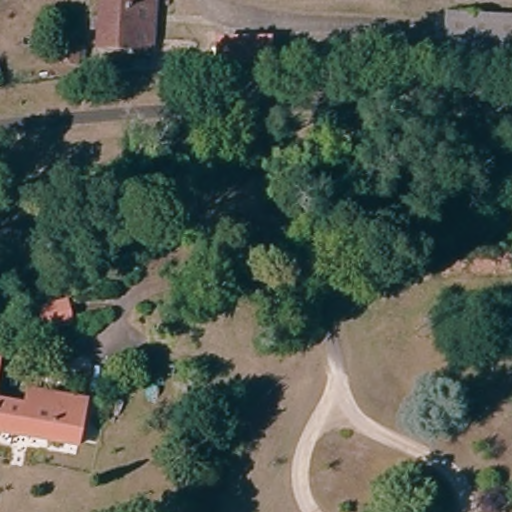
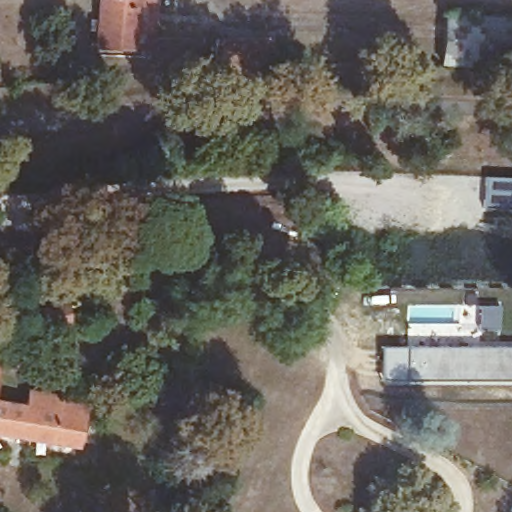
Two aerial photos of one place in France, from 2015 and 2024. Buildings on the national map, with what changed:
unchanged [(98,0),(136,0),(134,42),(96,41),(98,0)]
unchanged [(134,42),(136,0),(155,0),(152,43),(134,42)]
unchanged [(512,16),(512,65),(450,64),(452,14),(512,16)]
unchanged [(220,34),(269,36),(268,60),(219,60),(220,34)]
unchanged [(72,301),(75,320),(48,323),(47,304),(72,301)]
new [(478,304),(501,304),(501,329),(478,329),(478,304)]
new [(495,343),(512,343),(512,382),(491,382),(382,379),(381,346),(456,344),(495,343)]
unchanged [(68,414),(71,399),(89,402),(83,444),(0,430),(0,403),(68,414)]

